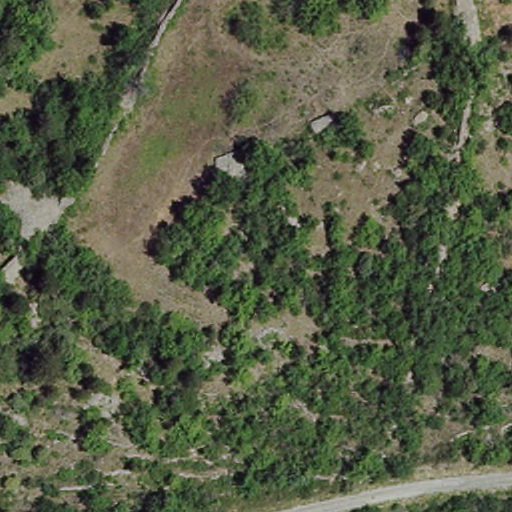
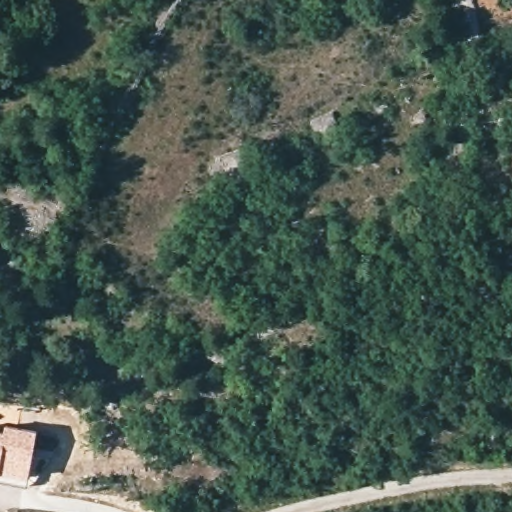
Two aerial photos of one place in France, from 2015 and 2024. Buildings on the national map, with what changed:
new [(5,432),(6,427),(37,432),(30,474),(0,468),(0,432),(5,432)]

